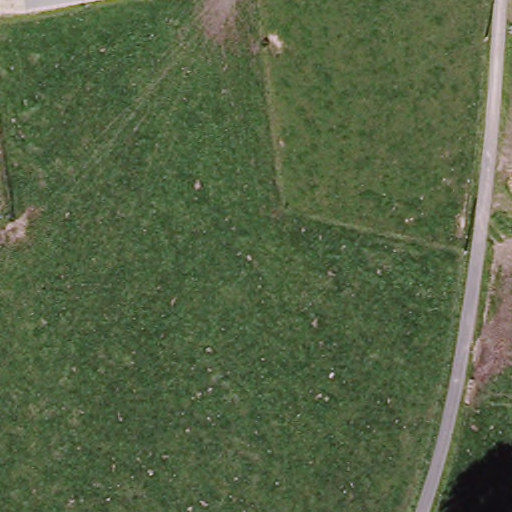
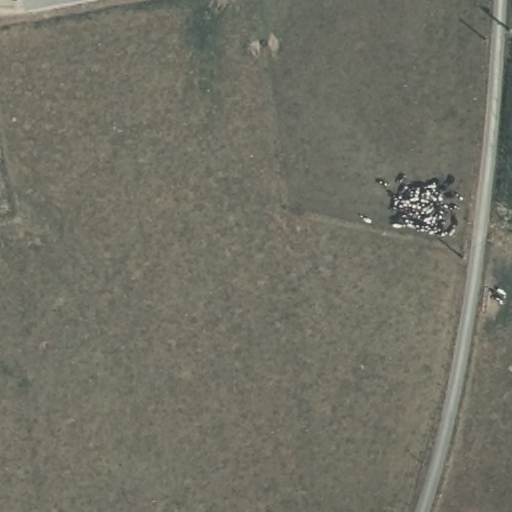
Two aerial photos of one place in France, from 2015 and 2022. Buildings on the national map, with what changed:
unchanged [(28,12),(26,0),(94,0),(28,12)]

